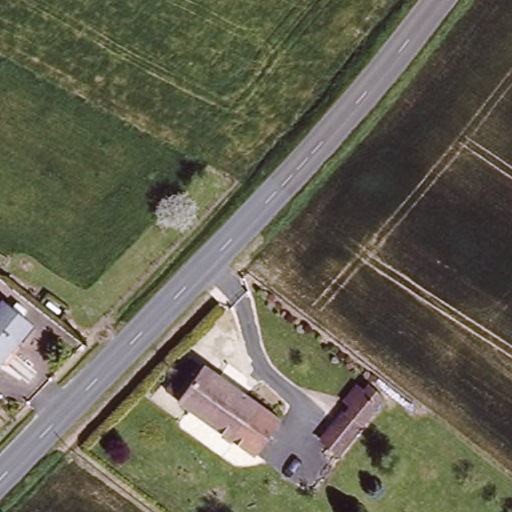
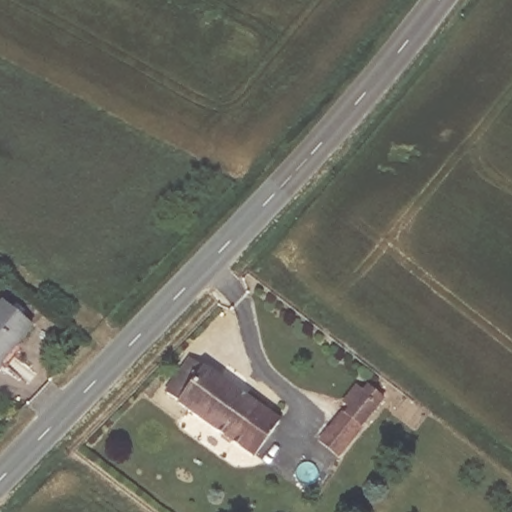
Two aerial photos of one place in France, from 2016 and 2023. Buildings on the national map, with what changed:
unchanged [(17,303),(25,311),(20,318),(30,326),(0,361),(0,302),(10,310),(17,303)]
unchanged [(227,379),(289,423),(262,460),(184,408),(186,405),(171,394),(195,361),(212,372),(227,379)]
unchanged [(370,392),(373,387),(389,400),(366,428),(349,415),(352,410),(350,403),(363,387),(370,392)]

